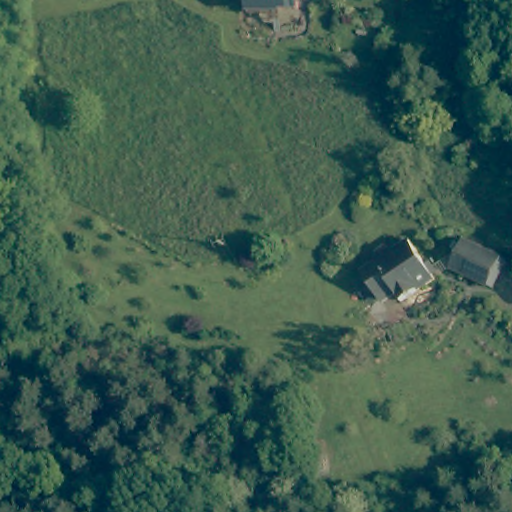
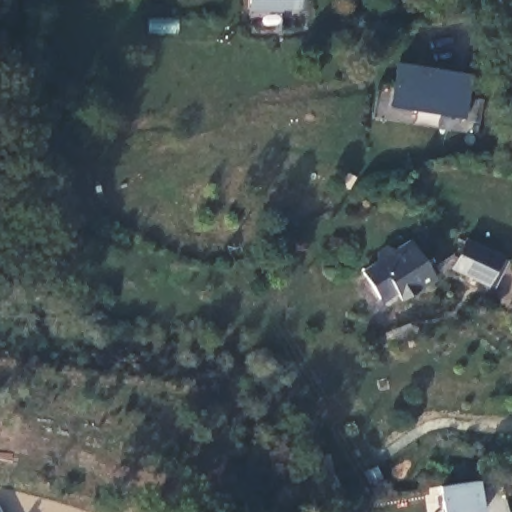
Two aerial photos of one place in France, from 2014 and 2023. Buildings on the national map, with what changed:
unchanged [(278,30),(278,24),(258,24),(258,17),(258,0),(307,0),(307,18),(290,18),(290,30),(278,30)]
new [(397,62),(471,74),(463,118),(389,107),(397,62)]
unchanged [(512,275),(507,286),(470,271),(482,243),(512,255),(512,275)]
unchanged [(435,282),(398,307),(397,308),(397,307),(390,296),(375,306),(357,280),(372,270),(375,261),(385,254),(393,256),(408,245),(435,282)]
new [(479,512),(442,512),(438,487),(475,483),(479,512)]

